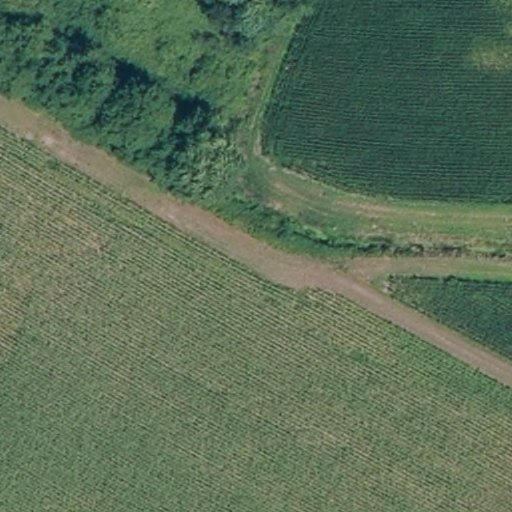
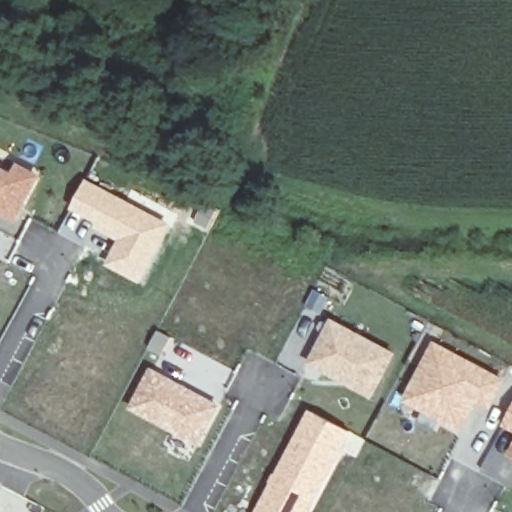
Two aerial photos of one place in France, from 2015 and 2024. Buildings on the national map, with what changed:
new [(12,170),(17,162),(41,175),(16,223),(0,214),(0,164),(12,170)]
new [(88,179),(172,224),(141,285),(105,265),(118,240),(70,209),(88,179)]
new [(330,318),(397,352),(372,399),(307,363),(330,318)]
new [(433,340),(504,378),(488,410),(477,404),(461,433),(402,400),(433,340)]
new [(149,365),(221,405),(199,446),(127,408),(149,365)]
new [(512,432),(501,425),(512,405),(512,432)]
new [(366,439),(356,458),(344,451),(311,512),(254,512),(309,408),(366,439)]
new [(512,444),(512,457),(506,454),(512,444)]

